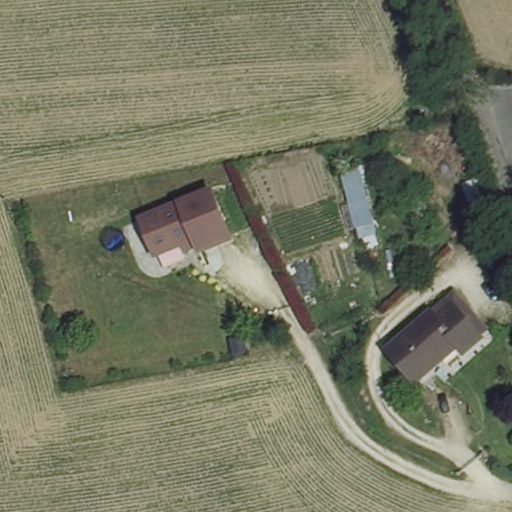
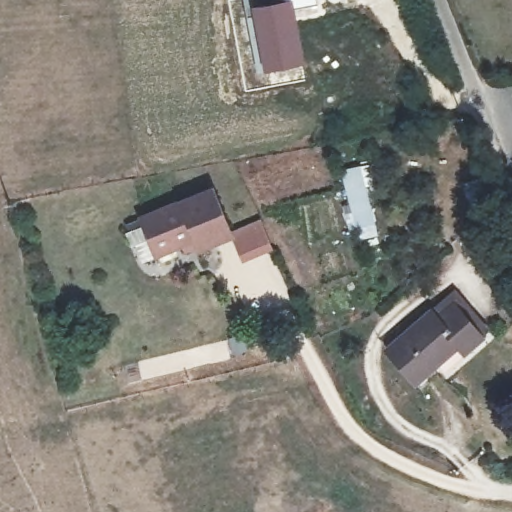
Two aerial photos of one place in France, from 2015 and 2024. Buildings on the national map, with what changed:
new [(314,4),(288,8),(299,63),(265,68),(255,12),(244,14),(241,0),(313,0),(314,4)]
unchanged [(358,166),(373,221),(353,227),(339,171),(358,166)]
unchanged [(198,242),(195,233),(155,249),(140,212),(212,183),(230,229),(198,242)]
unchanged [(510,261),(493,264),(478,218),(495,214),(510,261)]
unchanged [(431,362),(440,372),(422,385),(385,345),(430,306),(435,311),(452,297),(483,333),(465,347),(459,341),(431,362)]

